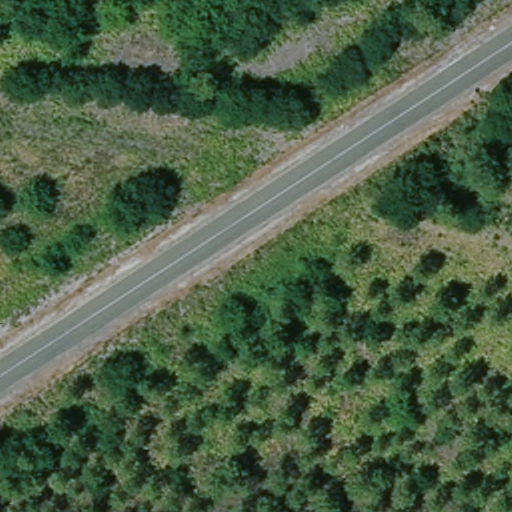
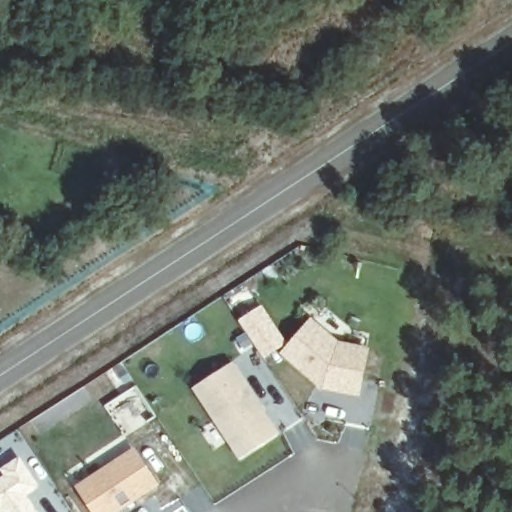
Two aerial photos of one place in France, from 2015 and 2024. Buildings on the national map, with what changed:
new [(322,389),(281,353),(312,318),(338,340),(370,347),(361,395),(322,389)]
new [(192,388),(233,362),(280,434),(240,460),(192,388)]
new [(135,447),(159,485),(118,512),(92,512),(76,485),(135,447)]
new [(0,469),(0,468),(20,456),(40,486),(28,495),(39,512),(0,512),(0,477),(3,475),(0,469)]

